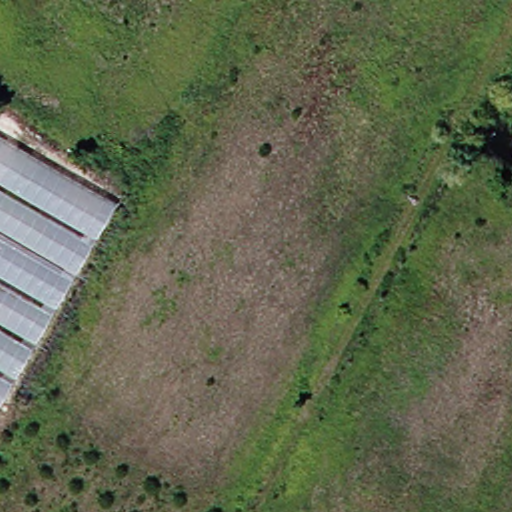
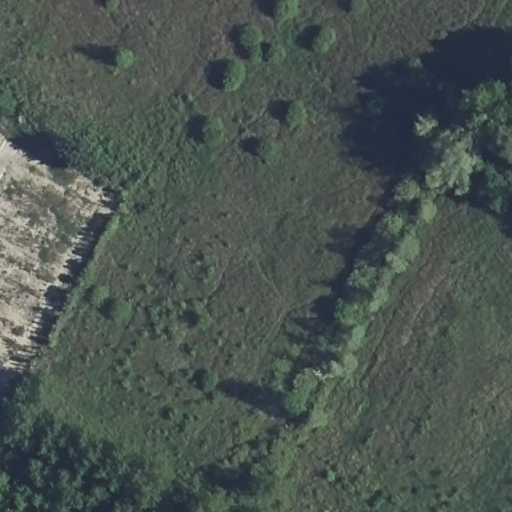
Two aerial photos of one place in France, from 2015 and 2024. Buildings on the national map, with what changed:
new [(0,404),(0,136),(116,203),(0,404)]

